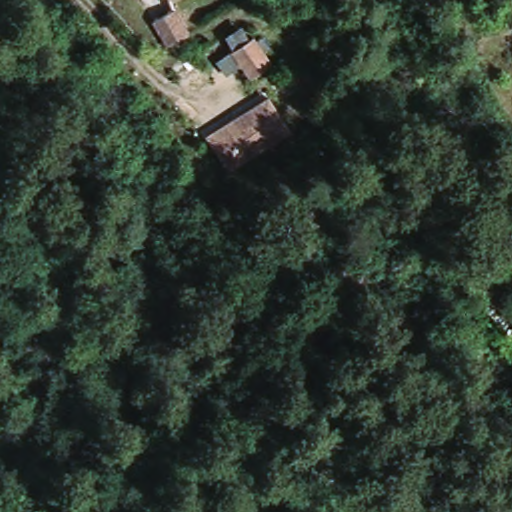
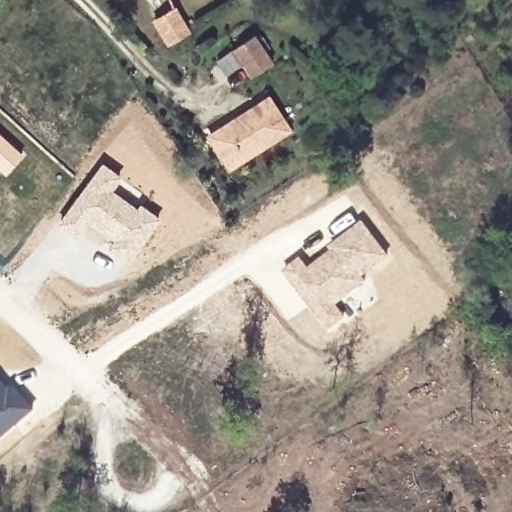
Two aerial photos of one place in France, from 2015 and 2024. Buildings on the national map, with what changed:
unchanged [(241,47),(234,35),(255,24),(261,35),(280,65),(260,77),(254,66),(240,74),(227,60),(243,50),(241,47)]
unchanged [(151,45),(171,33),(186,59),(166,71),(151,45)]
unchanged [(302,128),(246,167),(229,142),(223,132),(245,119),(280,95),(302,128)]
new [(22,156),(3,175),(0,172),(0,135),(22,156)]
new [(110,247),(115,241),(86,218),(74,234),(60,222),(102,165),(117,176),(107,191),(137,212),(140,207),(155,220),(127,260),(110,247)]
new [(300,255),(308,265),(328,248),(326,246),(361,218),(390,256),(337,303),(347,317),(326,332),(280,271),(300,255)]
new [(4,374),(35,408),(0,437),(0,369),(4,374)]

